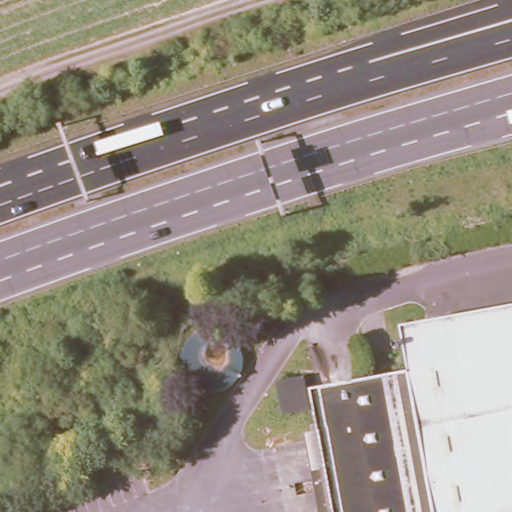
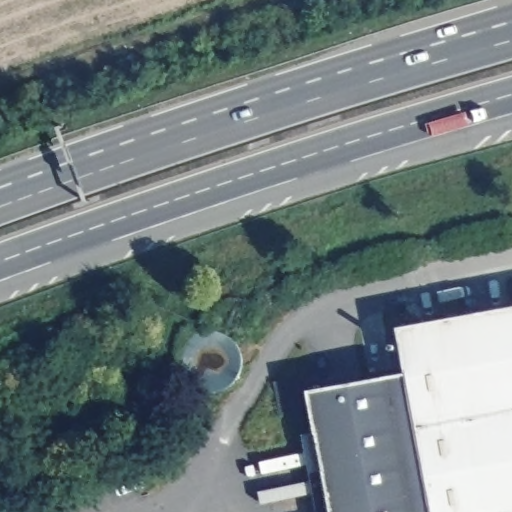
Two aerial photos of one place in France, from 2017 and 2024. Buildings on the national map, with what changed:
unchanged [(313,389),(412,372),(403,326),(512,305),(512,512),(334,512),(313,389)]
unchanged [(307,408),(281,412),(276,382),(302,378),(307,408)]

